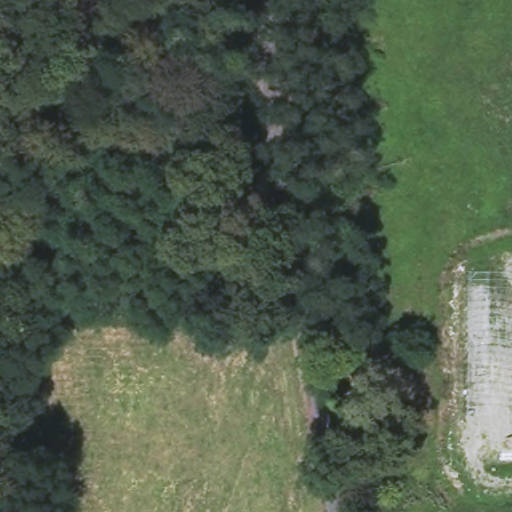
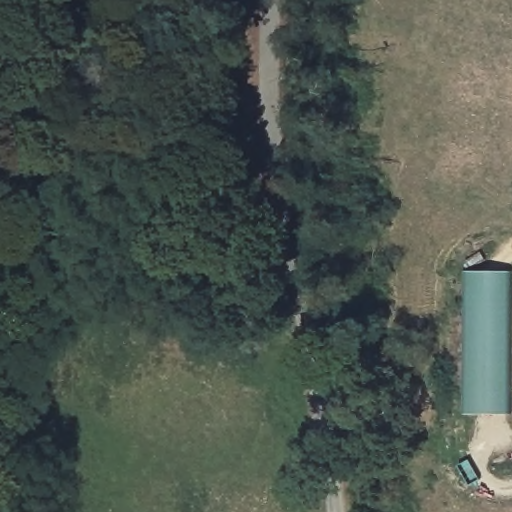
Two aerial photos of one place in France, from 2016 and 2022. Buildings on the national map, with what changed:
new [(511,413),(464,413),(467,271),(512,271),(511,413)]

